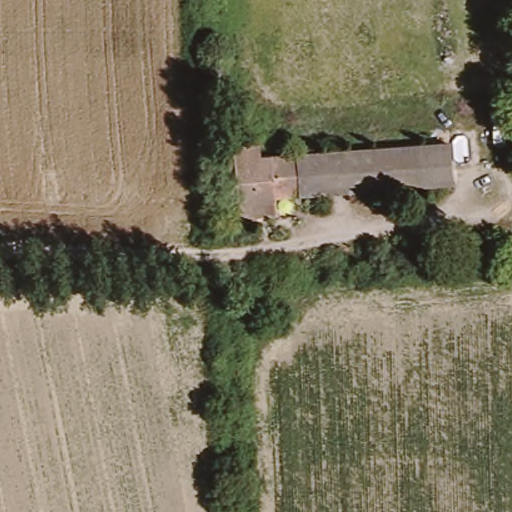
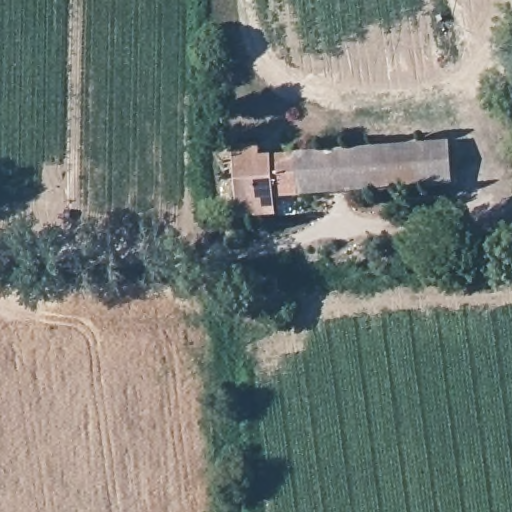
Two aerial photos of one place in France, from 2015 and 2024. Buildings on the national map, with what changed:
unchanged [(446,196),(290,200),(268,200),(269,222),(236,223),(235,138),(266,137),(267,153),(445,149),(446,196)]

